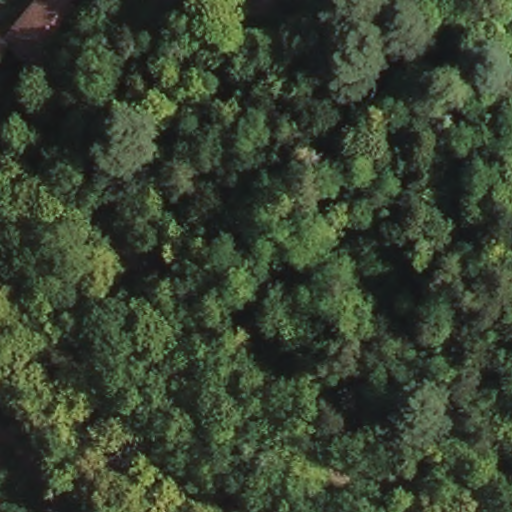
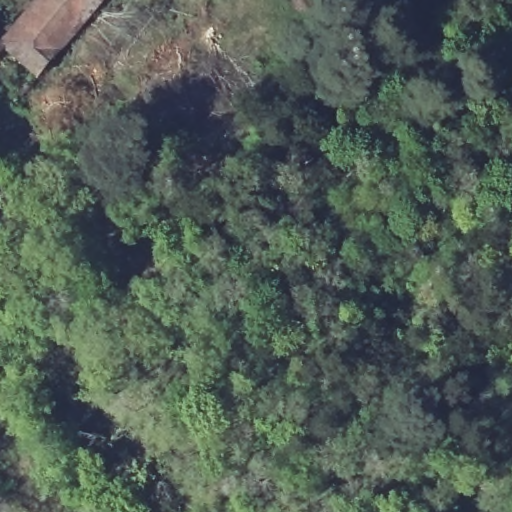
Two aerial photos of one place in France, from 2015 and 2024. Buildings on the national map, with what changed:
unchanged [(112,0),(65,55),(31,25),(54,0),(112,0)]
unchanged [(44,78),(11,50),(31,25),(65,55),(44,78)]
unchanged [(0,62),(0,40),(11,50),(0,62)]

